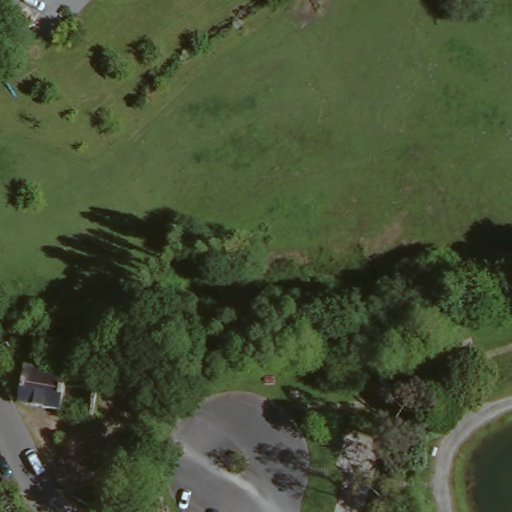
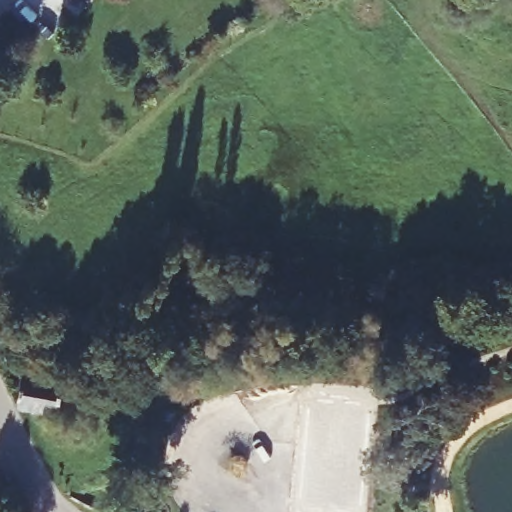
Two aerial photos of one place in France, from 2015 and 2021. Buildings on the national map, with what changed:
unchanged [(75,372),(72,381),(103,387),(97,418),(25,401),(27,365),(75,372)]

